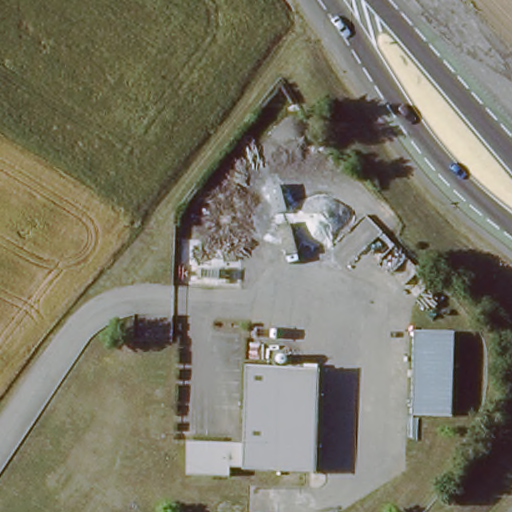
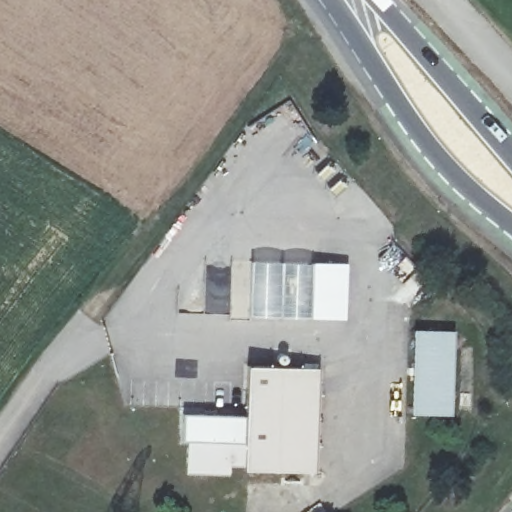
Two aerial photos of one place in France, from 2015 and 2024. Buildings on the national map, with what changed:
new [(252,262),(313,263),(348,265),(346,320),(312,318),(251,316),(252,262)]
unchanged [(453,417),(413,416),(416,330),(455,333),(453,417)]
unchanged [(263,392),(310,393),(307,472),(240,470),(240,467),(226,467),(226,476),(183,474),(184,442),(236,443),(238,366),(263,367),(263,392)]
unchanged [(311,368),(310,393),(263,392),(263,367),(311,368)]

